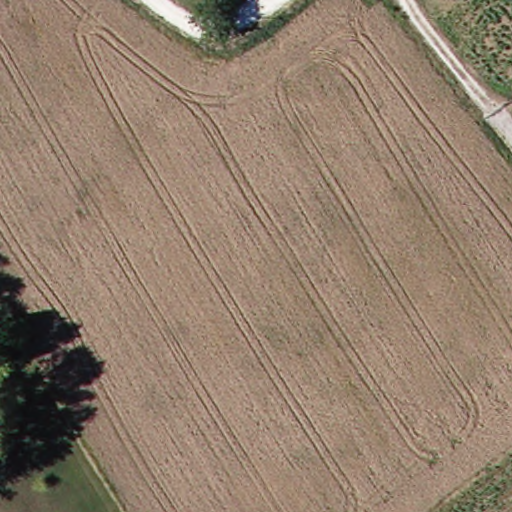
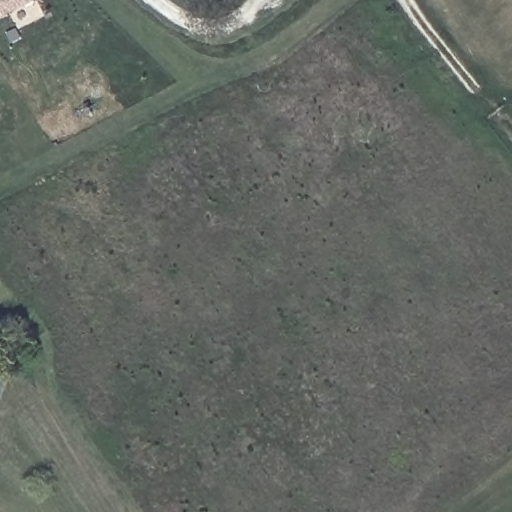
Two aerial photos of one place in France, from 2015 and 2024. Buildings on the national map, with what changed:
new [(0,15),(0,0),(30,0),(0,15)]

